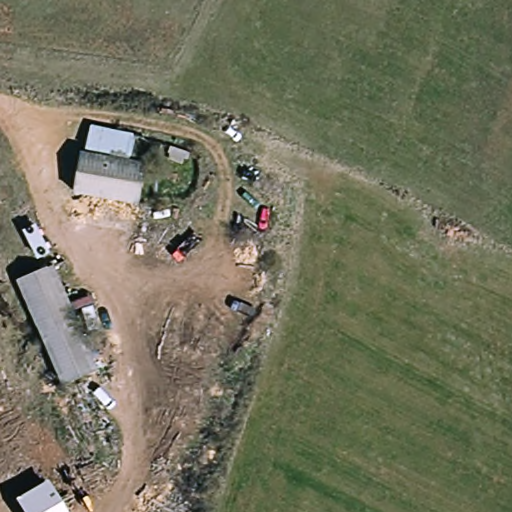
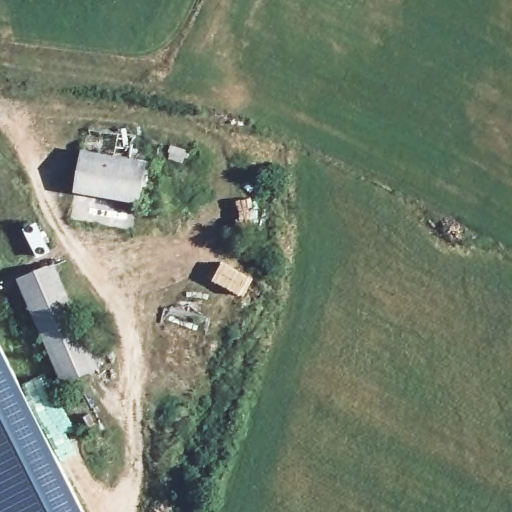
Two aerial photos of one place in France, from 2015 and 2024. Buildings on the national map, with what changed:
unchanged [(77,196),(87,128),(136,135),(132,163),(146,165),(139,206),(77,196)]
unchanged [(94,370),(62,384),(17,280),(50,269),(94,370)]
new [(84,512),(0,512),(0,349),(84,512)]
demolished [(23,512),(15,499),(48,480),(66,512),(23,512)]

